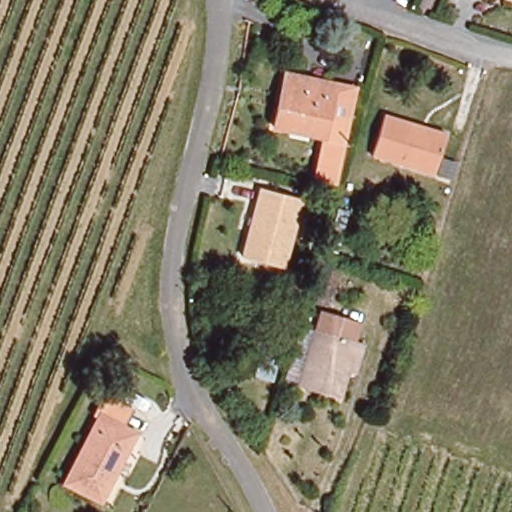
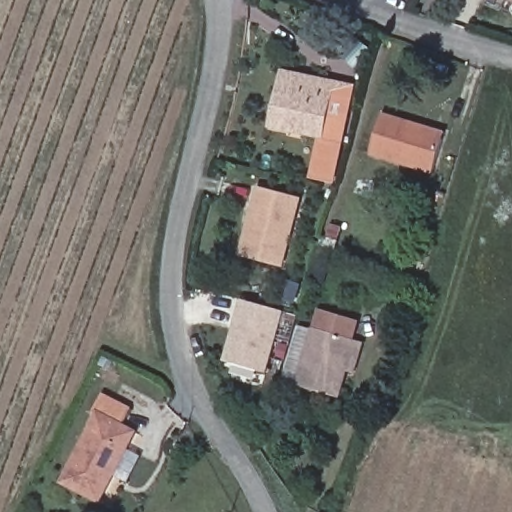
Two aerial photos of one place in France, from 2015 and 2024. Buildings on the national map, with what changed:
unchanged [(318,173),(326,133),(279,123),(283,102),(280,101),(282,92),(285,92),(290,72),(337,82),(356,86),(350,112),(336,177),(318,173)]
unchanged [(370,150),(383,110),(425,123),(445,130),(443,136),(433,170),(370,150)]
unchanged [(301,201),(282,269),(242,258),(261,189),(301,201)]
new [(242,298),(282,309),(265,373),(225,361),(242,298)]
unchanged [(355,341),(362,343),(353,373),(346,370),(337,399),(296,386),(297,383),(282,378),(298,327),(312,332),(314,328),(319,311),(331,315),(357,323),(352,340),(355,341)]
unchanged [(97,505),(60,486),(95,420),(89,417),(99,398),(127,413),(120,430),(133,436),(97,505)]

